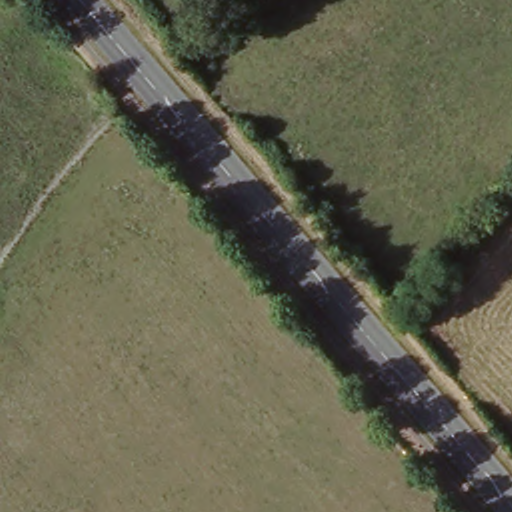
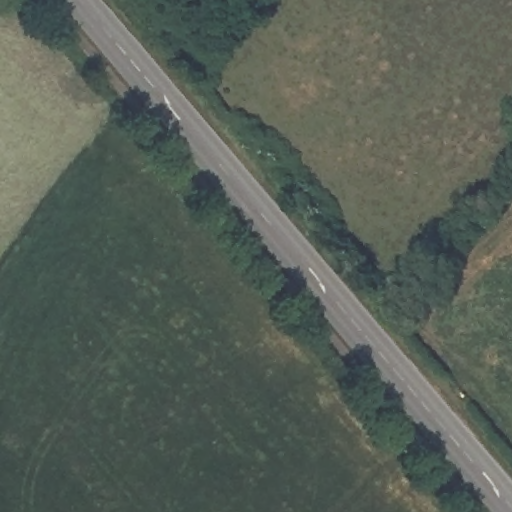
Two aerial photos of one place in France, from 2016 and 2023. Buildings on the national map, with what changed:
[]

